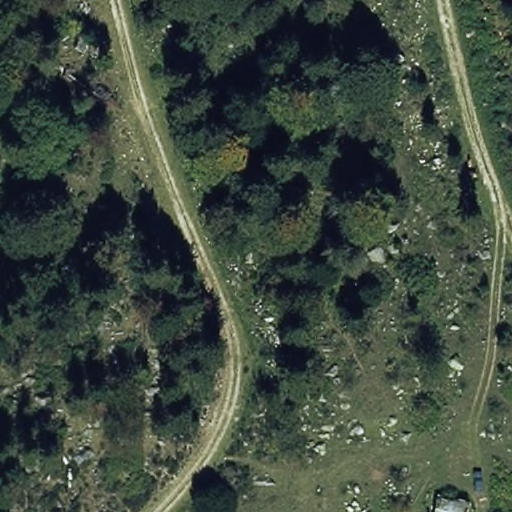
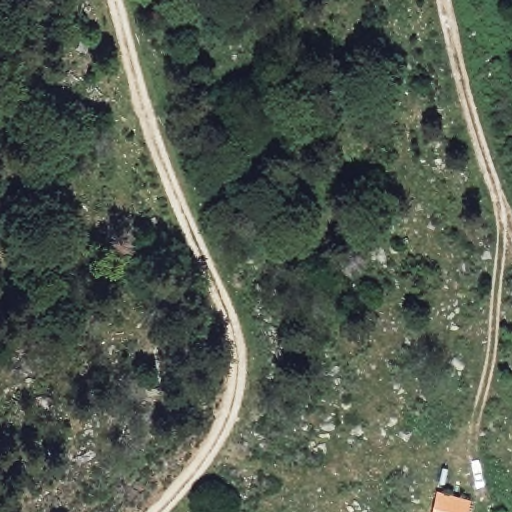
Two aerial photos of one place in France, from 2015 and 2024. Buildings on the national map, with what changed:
unchanged [(439,488),(475,496),(470,512),(432,512),(439,488)]

